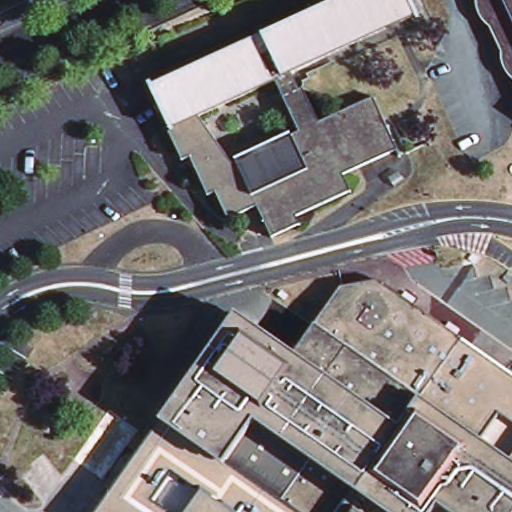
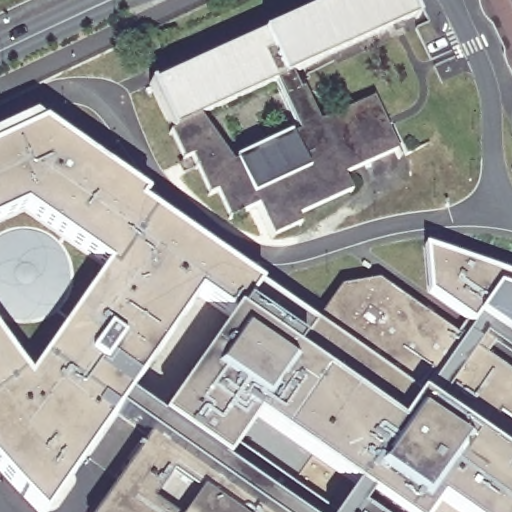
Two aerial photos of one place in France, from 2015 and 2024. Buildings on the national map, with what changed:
unchanged [(302,94),(319,129),(371,104),(396,157),(343,182),(350,199),(302,222),(304,227),(273,241),(259,211),(232,222),(219,195),(211,198),(194,162),(185,166),(169,135),(149,93),(350,0),(407,0),(411,9),(416,21),(399,27),(290,78),(298,96),(302,94)]
unchanged [(512,0),(512,58),(486,0),(512,0)]
new [(21,125),(37,115),(148,195),(144,205),(253,287),(237,314),(228,327),(215,315),(205,332),(184,315),(125,399),(160,424),(152,435),(117,410),(46,512),(38,512),(0,473),(0,348),(20,372),(59,347),(53,339),(104,267),(24,207),(0,220),(0,135),(21,125)]
unchanged [(448,284),(496,289),(512,292),(512,353),(466,322),(448,284)]
unchanged [(163,420),(237,314),(297,353),(341,292),(378,285),(419,312),(499,367),(512,375),(512,512),(440,512),(439,511),(438,512),(100,512),(163,420)]

